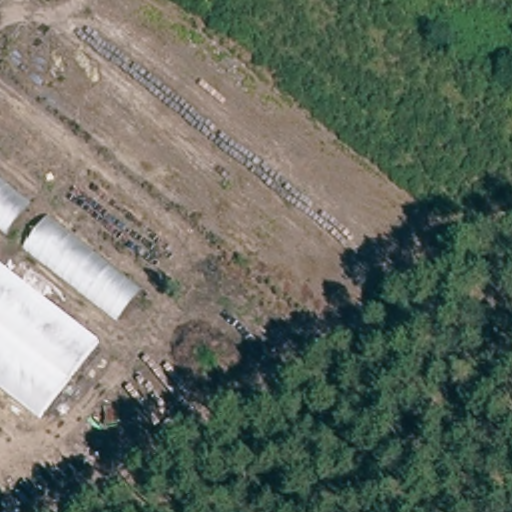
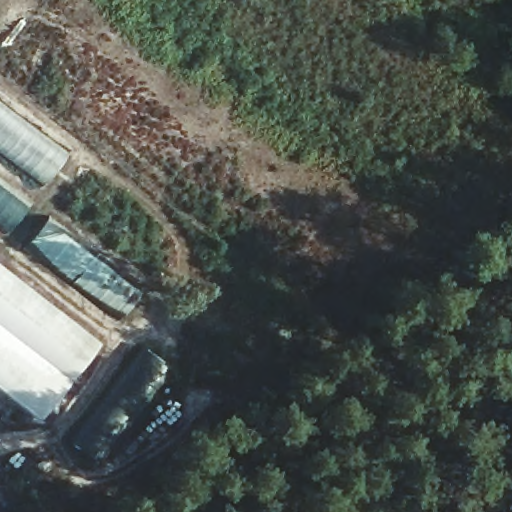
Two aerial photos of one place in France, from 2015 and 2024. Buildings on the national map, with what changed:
new [(44,183),(0,151),(0,108),(65,156),(44,183)]
unchanged [(34,207),(8,237),(0,231),(0,181),(34,207)]
unchanged [(50,220),(147,291),(123,324),(25,252),(50,220)]
unchanged [(39,296),(104,349),(44,424),(0,389),(0,266),(39,296)]

